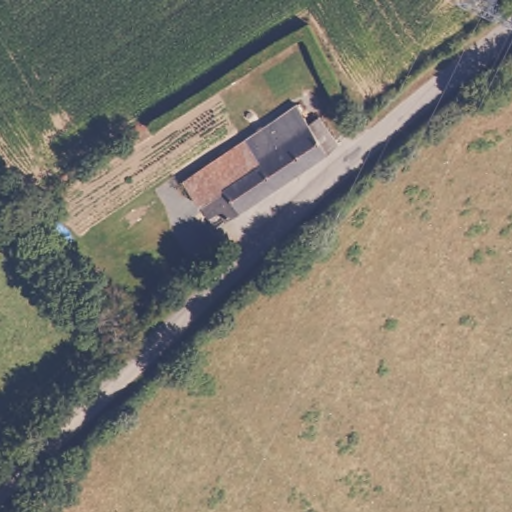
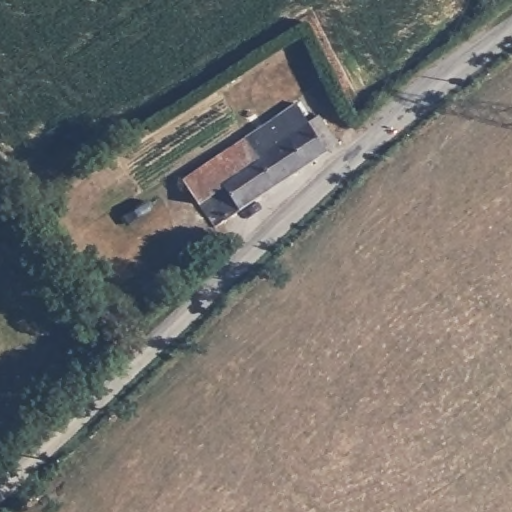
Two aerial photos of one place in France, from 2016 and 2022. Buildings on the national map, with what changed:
unchanged [(232,226),(223,215),(214,220),(189,184),(303,110),(315,127),(327,121),(343,147),(341,149),(232,226)]

